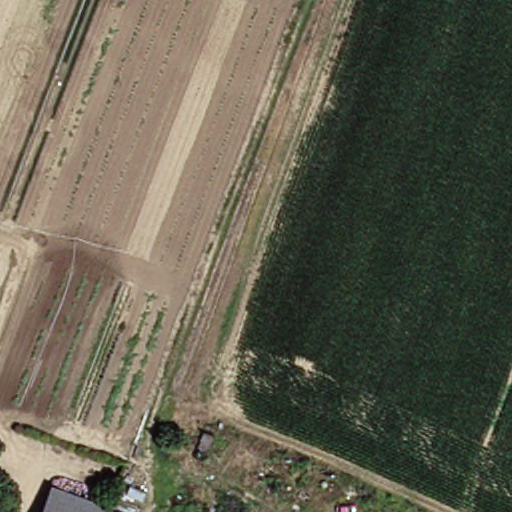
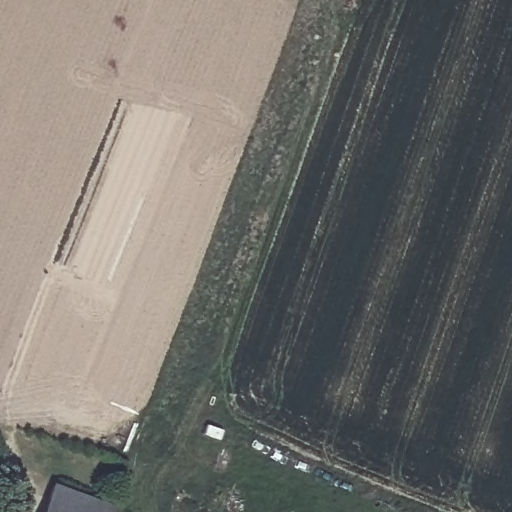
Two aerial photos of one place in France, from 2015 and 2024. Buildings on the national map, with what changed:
unchanged [(117,506),(114,512),(45,512),(57,484),(117,506)]

